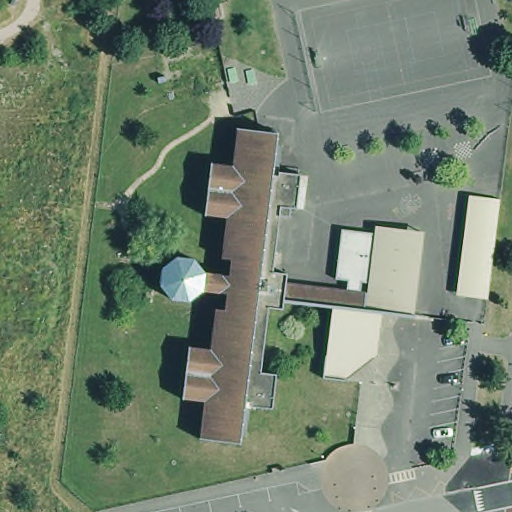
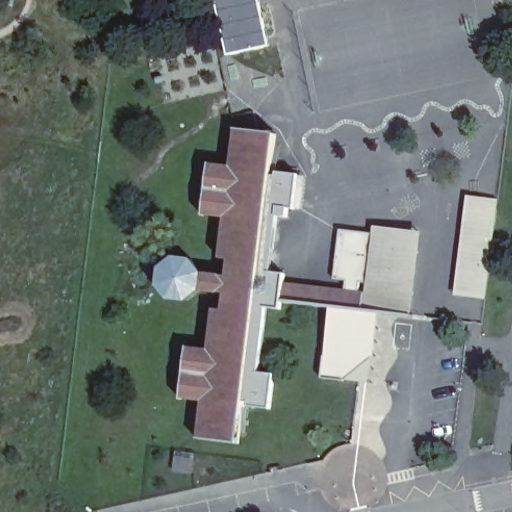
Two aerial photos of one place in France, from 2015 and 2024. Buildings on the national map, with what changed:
new [(264,48),(223,55),(212,0),(255,0),(264,48)]
unchanged [(245,398),(240,441),(198,436),(203,397),(182,395),(188,344),(210,346),(214,306),(225,308),(227,290),(203,287),(190,299),(171,298),(159,281),(161,266),(176,253),(194,255),(206,272),(229,275),(231,257),(220,255),(225,214),(203,211),(210,159),(231,162),(235,124),(277,129),(272,172),(245,398)]
unchanged [(363,381),(324,377),(326,354),(327,354),(332,306),(284,301),(283,307),(270,306),(261,369),(277,371),(273,406),(251,404),(251,399),(245,398),(272,172),(277,172),(278,168),(301,170),(296,206),(289,205),(287,214),(280,213),(273,270),(287,272),(286,280),(349,287),(350,279),(336,277),(341,227),(380,232),(380,224),(420,229),(411,315),(385,312),(376,383),(363,381)]
unchanged [(458,293),(471,192),(503,196),(501,214),(501,217),(490,297),(458,293)]

